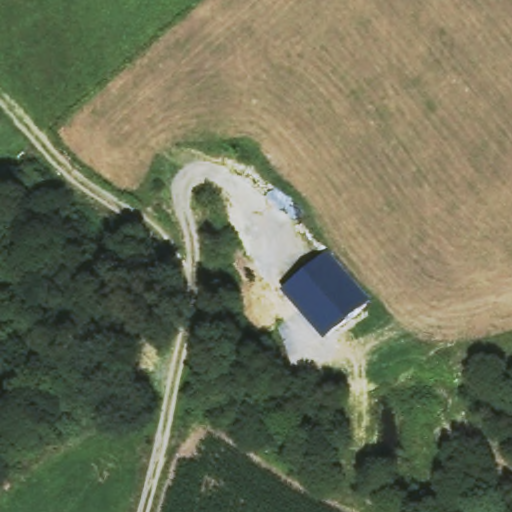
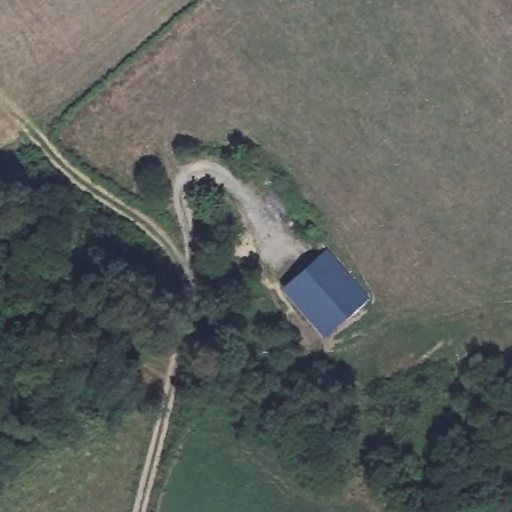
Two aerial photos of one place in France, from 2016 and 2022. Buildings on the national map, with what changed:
unchanged [(323,338),(281,291),(326,251),(367,299),(323,338)]

